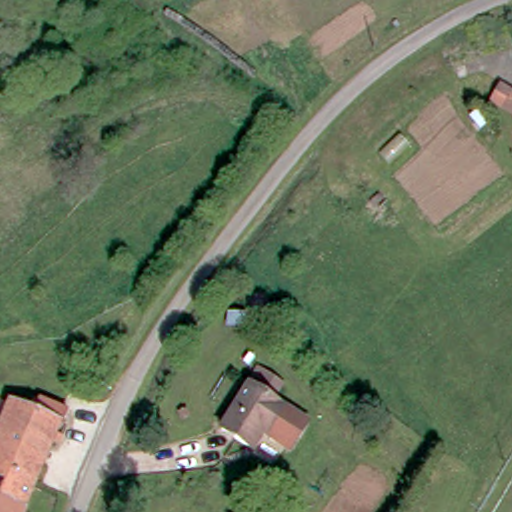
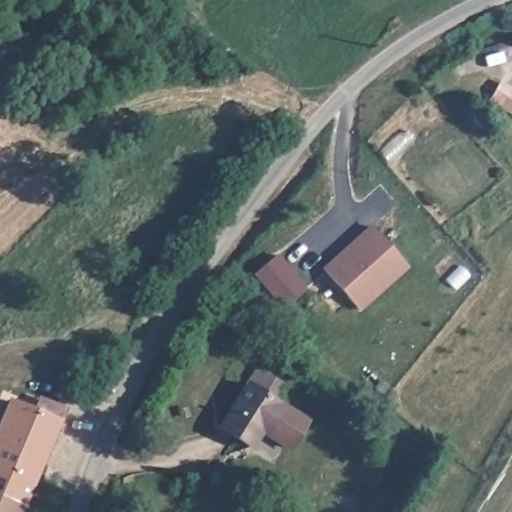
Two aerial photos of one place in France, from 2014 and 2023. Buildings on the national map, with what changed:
new [(411,267),(361,311),(323,268),(371,224),(411,267)]
unchanged [(283,414),(273,429),(270,427),(261,440),(250,456),(218,434),(258,377),(282,393),(273,407),(283,414)]
unchanged [(41,408),(73,425),(28,512),(0,512),(0,438),(15,408),(35,418),(41,408)]
unchanged [(306,432),(288,458),(261,440),(270,427),(273,429),(283,414),(306,432)]

